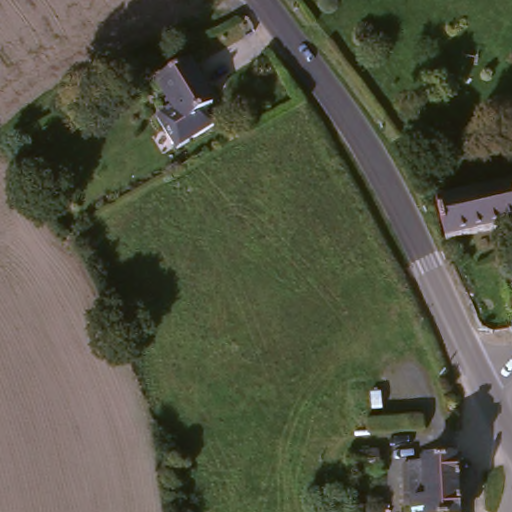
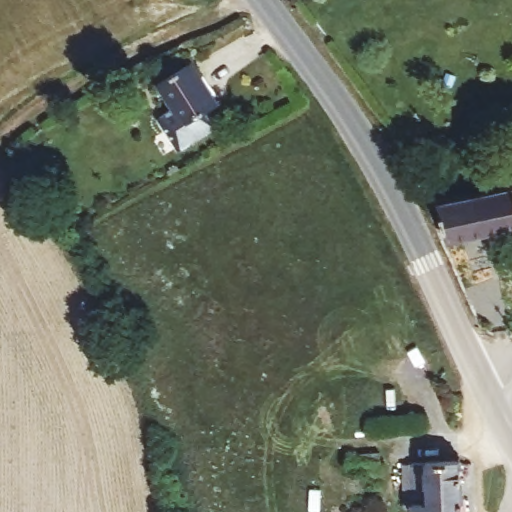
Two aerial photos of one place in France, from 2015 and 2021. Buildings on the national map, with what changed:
unchanged [(180,102),(167,78),(172,71),(203,54),(212,68),(211,80),(223,102),(214,109),(222,125),(185,147),(163,111),(180,102)]
unchanged [(495,123),(438,135),(435,125),(492,112),(495,123)]
unchanged [(426,127),(429,141),(407,146),(401,133),(426,127)]
unchanged [(437,200),(512,189),(512,229),(443,240),(437,200)]
unchanged [(378,454),(368,456),(351,457),(350,444),(376,441),(378,454)]
unchanged [(413,507),(419,506),(416,459),(462,456),(469,511),(467,512),(414,512),(413,507)]

